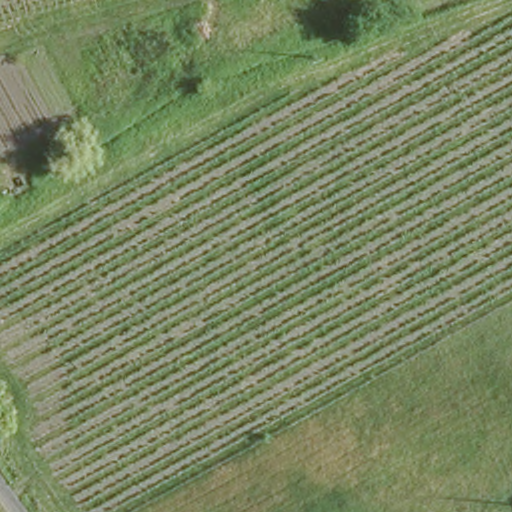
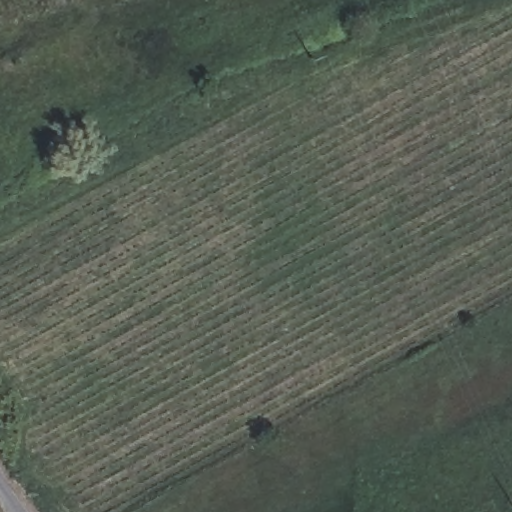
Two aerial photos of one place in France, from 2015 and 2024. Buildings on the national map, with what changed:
[]

